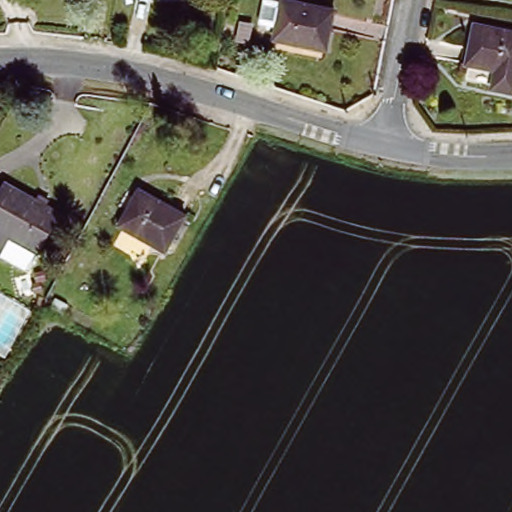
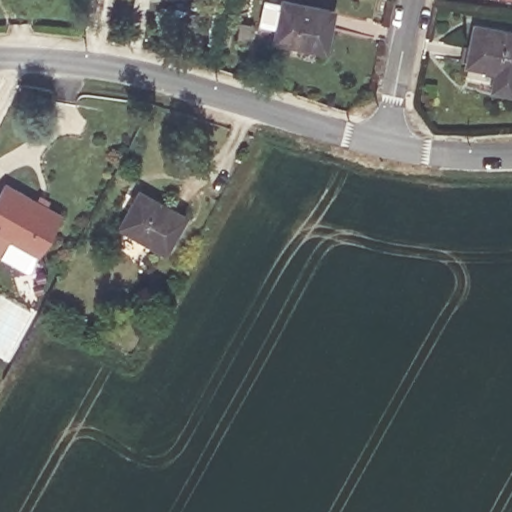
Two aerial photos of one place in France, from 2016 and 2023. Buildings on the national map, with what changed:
unchanged [(338,7),(330,48),(281,37),(282,32),(265,29),(270,3),(288,6),(290,0),(304,0),(338,7)]
unchanged [(495,85),(498,66),(473,61),(481,20),(512,27),(512,88),(510,87),(495,85)]
unchanged [(62,211),(40,249),(12,233),(2,250),(0,249),(0,190),(7,179),(62,211)]
unchanged [(189,213),(169,245),(126,220),(121,216),(141,184),(145,186),(189,213)]

